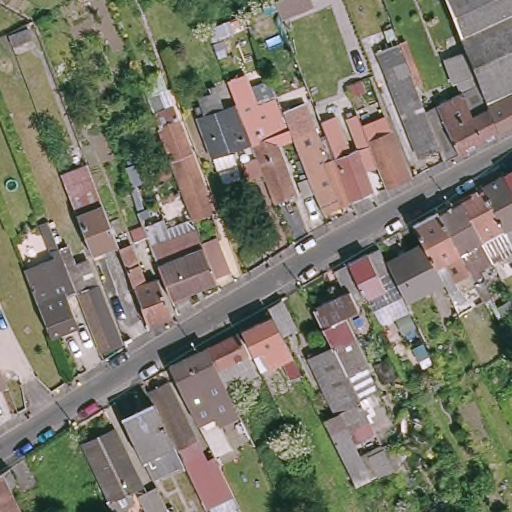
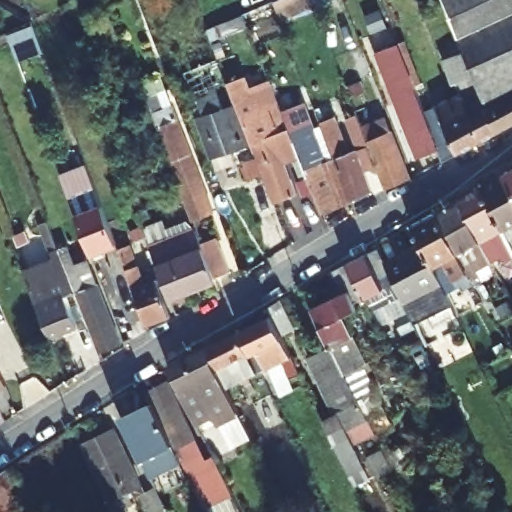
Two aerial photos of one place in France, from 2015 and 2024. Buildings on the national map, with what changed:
unchanged [(274,0),(332,0),(329,1),(281,20),(277,11),(247,25),(243,14),(273,1),(274,0)]
unchanged [(497,19),(460,36),(446,0),(512,0),(512,12),(502,16),(497,19)]
unchanged [(464,46),(460,36),(497,19),(502,16),(512,12),(512,125),(498,133),(479,85),(474,71),(472,66),(449,76),(441,55),(464,46)]
unchanged [(389,81),(376,51),(397,43),(406,40),(423,84),(414,88),(416,93),(424,114),(437,149),(417,156),(389,81)]
unchanged [(442,162),(441,160),(437,149),(424,114),(479,85),(498,133),(442,162)]
unchanged [(143,96),(166,88),(213,209),(191,217),(143,96)]
unchanged [(286,113),(293,129),(279,135),(299,194),(279,201),(258,142),(255,143),(239,101),(256,96),(261,110),(282,101),(286,113)]
unchanged [(334,168),(331,170),(346,205),(326,215),(293,129),(286,113),(309,105),(334,168)]
unchanged [(221,170),(216,156),(203,118),(239,106),(251,144),(235,150),(240,164),(221,170)]
unchanged [(365,128),(367,133),(381,168),(369,172),(376,190),(353,200),(324,122),(339,116),(353,152),(361,149),(351,121),(361,118),(365,128)]
unchanged [(390,192),(381,168),(367,133),(365,128),(389,119),(413,180),(390,192)]
unchanged [(246,165),(261,159),(266,171),(249,177),(246,165)]
unchanged [(75,213),(68,194),(68,192),(61,175),(60,173),(85,162),(89,172),(95,188),(100,203),(116,242),(90,252),(75,213)]
unchanged [(512,164),(512,184),(504,169),(512,164)]
unchanged [(512,184),(512,240),(481,181),(504,169),(512,184)]
unchanged [(494,229),(481,236),(458,193),(481,181),(512,240),(512,248),(507,251),(494,229)]
unchanged [(491,290),(483,294),(436,204),(458,193),(481,236),(491,255),(477,263),(491,290)]
unchanged [(474,298),(471,291),(454,300),(441,275),(423,236),(413,216),(436,204),(483,294),(474,298)]
unchanged [(216,236),(228,270),(213,275),(215,279),(169,297),(154,256),(143,260),(135,241),(147,237),(151,247),(196,230),(200,241),(216,236)]
unchanged [(392,267),(386,254),(423,236),(441,275),(404,293),(392,267)]
unchanged [(389,295),(371,303),(365,290),(349,256),(379,241),(386,254),(392,267),(379,273),(389,295)]
unchanged [(71,257),(75,256),(78,266),(89,262),(118,342),(98,350),(73,285),(62,257),(58,246),(66,243),(71,257)]
unchanged [(118,247),(130,243),(144,281),(156,277),(168,314),(146,323),(118,247)]
unchanged [(354,296),(357,303),(344,309),(366,355),(364,356),(376,382),(356,390),(331,338),(329,333),(313,301),(346,286),(335,262),(349,256),(365,290),(354,296)]
unchanged [(63,289),(77,323),(49,335),(24,271),(62,257),(73,285),(63,289)]
unchanged [(265,374),(246,334),(276,318),(272,310),(286,301),(296,323),(281,330),(296,360),(265,374)]
unchanged [(211,350),(242,335),(261,377),(231,392),(211,350)]
unchanged [(321,412),(336,405),(309,349),(331,338),(356,390),(392,461),(355,480),(321,412)]
unchanged [(174,370),(183,364),(211,350),(231,392),(243,417),(223,427),(219,420),(203,428),(186,394),(174,370)]
unchanged [(11,395),(0,399),(0,365),(11,395)]
unchanged [(193,476),(158,404),(153,393),(171,384),(208,460),(216,456),(223,469),(195,482),(193,476)]
unchanged [(193,476),(161,490),(126,419),(158,404),(193,476)]
unchanged [(112,504),(115,502),(88,447),(119,432),(146,488),(133,494),(139,506),(126,512),(117,512),(112,504)]
unchanged [(15,512),(0,512),(0,467),(3,465),(11,480),(7,482),(2,485),(15,512)]
unchanged [(145,498),(161,490),(172,512),(152,512),(145,498)]

